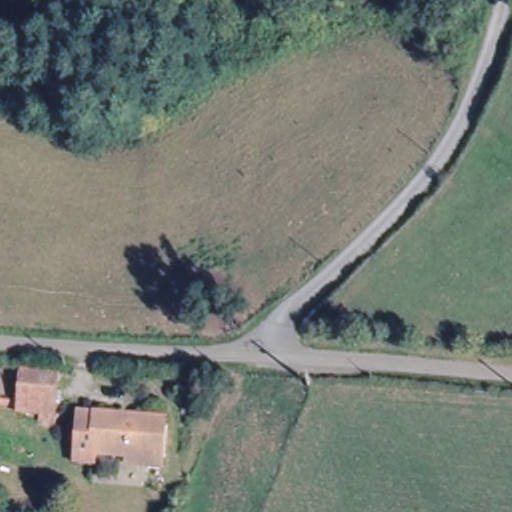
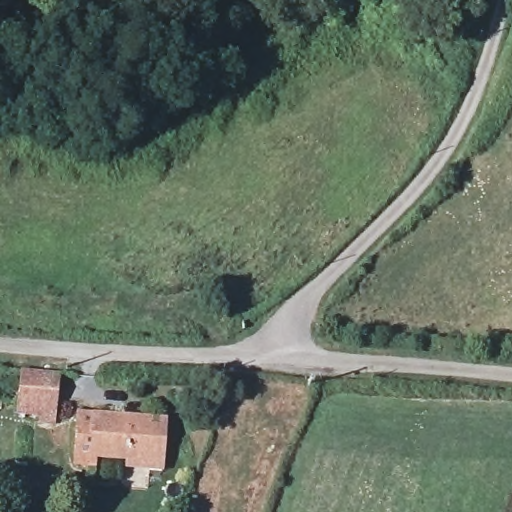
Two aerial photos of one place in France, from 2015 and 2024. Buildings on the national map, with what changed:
unchanged [(55,380),(55,400),(20,398),(22,380),(55,380)]
unchanged [(160,415),(160,452),(90,446),(90,453),(73,451),(75,421),(93,421),(93,411),(160,415)]

